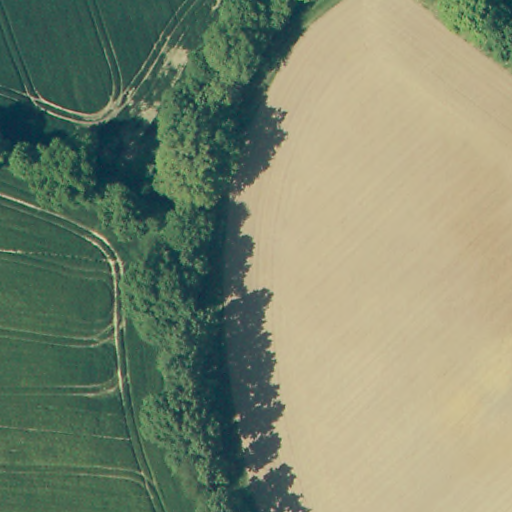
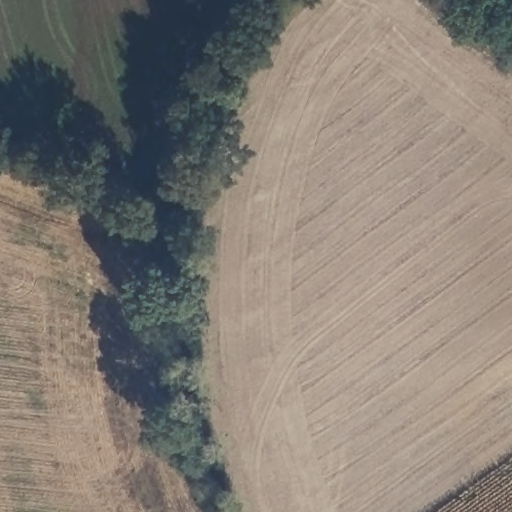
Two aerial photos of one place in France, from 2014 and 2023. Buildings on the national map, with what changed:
[]

